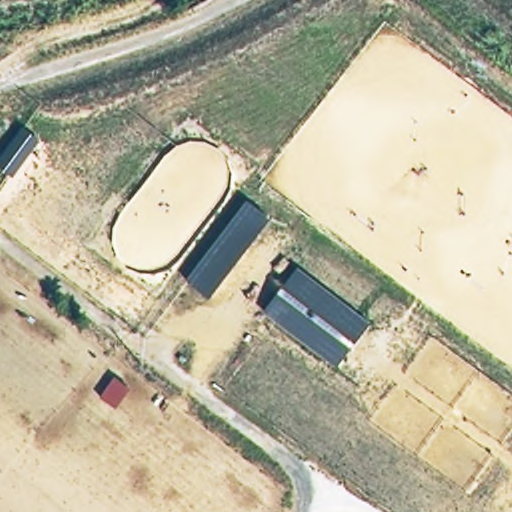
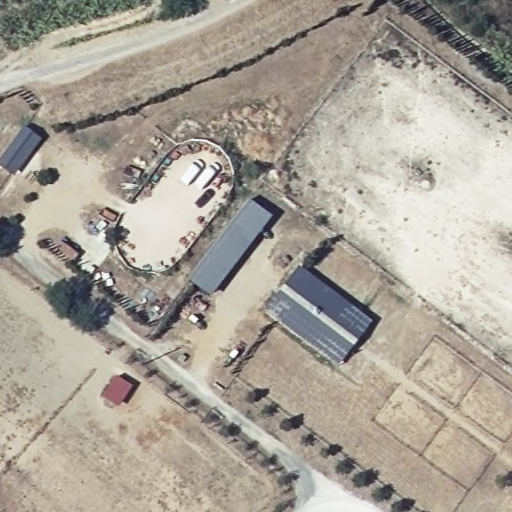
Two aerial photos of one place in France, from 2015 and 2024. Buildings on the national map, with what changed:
unchanged [(15,180),(0,168),(0,150),(21,124),(43,140),(15,180)]
unchanged [(211,300),(185,280),(246,200),(272,219),(211,300)]
unchanged [(339,370),(263,314),(299,265),(374,323),(339,370)]

